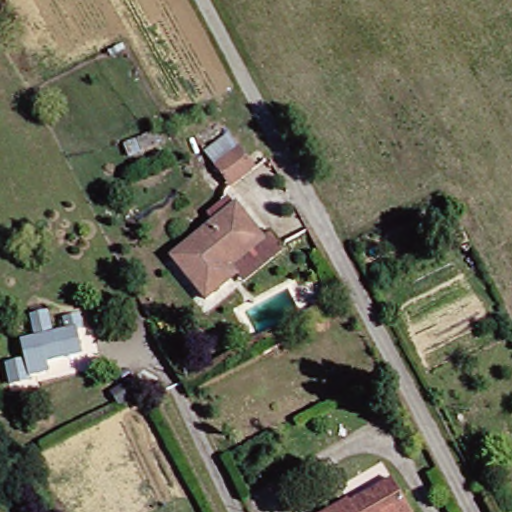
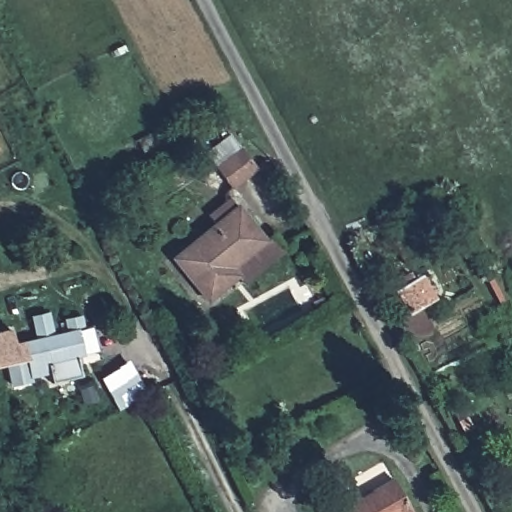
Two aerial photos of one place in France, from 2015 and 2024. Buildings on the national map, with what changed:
unchanged [(221,186),(212,175),(204,165),(229,146),(246,166),(221,186)]
unchanged [(206,302),(170,256),(183,246),(173,234),(210,205),(219,215),(231,204),(262,241),(222,272),(231,283),(206,302)]
unchanged [(262,241),(276,258),(239,291),(231,283),(222,272),(262,241)]
new [(426,276),(445,306),(420,321),(402,292),(426,276)]
unchanged [(21,359),(15,342),(34,336),(27,317),(44,312),(52,333),(61,330),(73,365),(25,381),(7,385),(4,363),(21,359)]
unchanged [(397,499),(403,511),(401,512),(320,512),(385,476),(397,499)]

